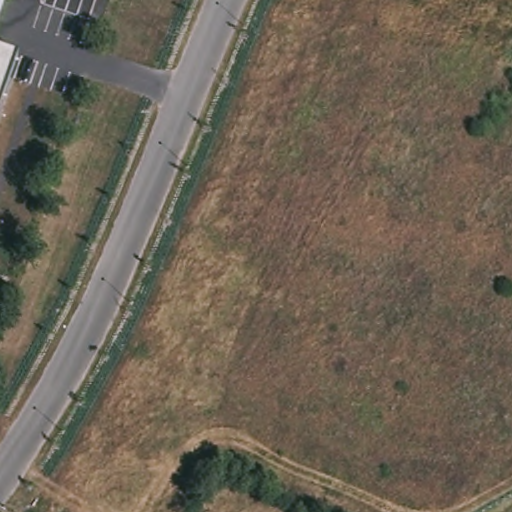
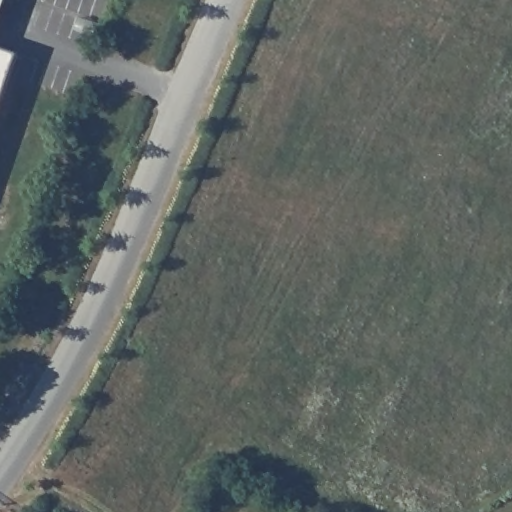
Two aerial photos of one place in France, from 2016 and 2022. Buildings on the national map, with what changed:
unchanged [(0,17),(0,0),(5,0),(0,17)]
unchanged [(0,100),(0,47),(16,53),(0,100)]

